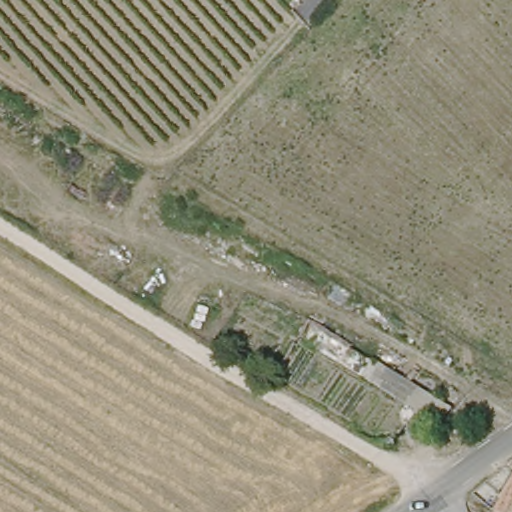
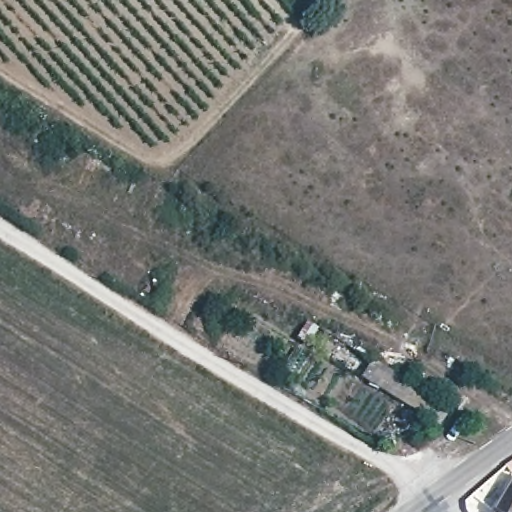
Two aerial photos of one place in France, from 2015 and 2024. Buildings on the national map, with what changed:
unchanged [(415,388),(435,398),(426,413),(406,406),(415,388)]
unchanged [(512,484),(512,512),(499,512),(496,510),(512,484)]

